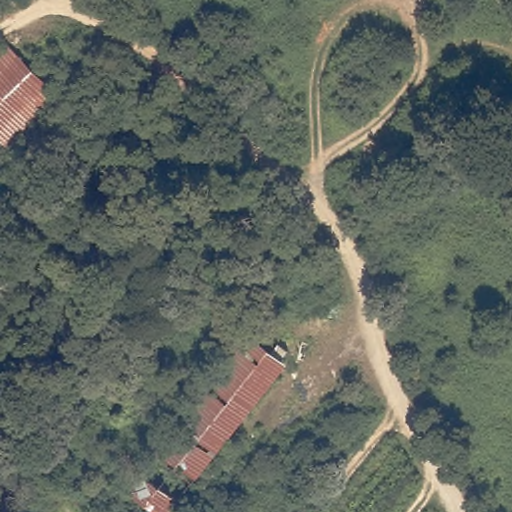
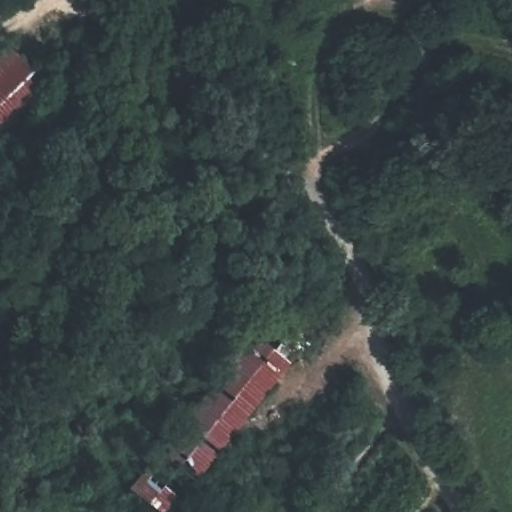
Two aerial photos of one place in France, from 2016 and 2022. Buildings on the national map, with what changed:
unchanged [(60,97),(0,156),(0,51),(9,42),(60,97)]
unchanged [(292,360),(217,453),(182,425),(257,332),(292,360)]
unchanged [(170,512),(165,512),(133,486),(182,425),(217,453),(170,512)]

